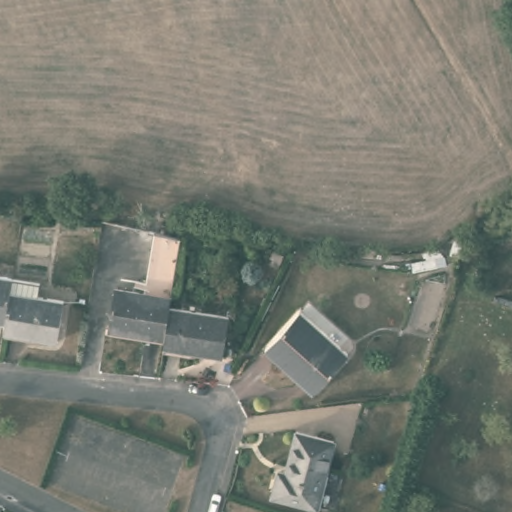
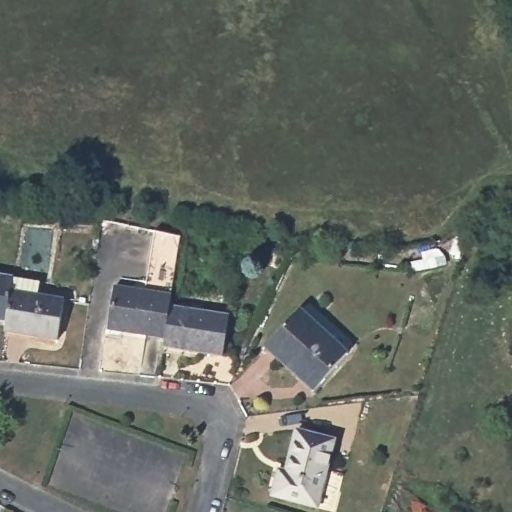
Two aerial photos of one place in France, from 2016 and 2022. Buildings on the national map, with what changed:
unchanged [(145,286),(153,231),(185,236),(174,292),(145,286)]
unchanged [(17,286),(11,318),(0,316),(0,272),(18,275),(17,286)]
unchanged [(173,303),(167,334),(112,324),(119,282),(145,286),(174,292),(173,303)]
unchanged [(11,318),(17,286),(70,296),(62,335),(9,325),(11,318)]
unchanged [(167,334),(173,303),(232,314),(226,353),(166,343),(167,334)]
unchanged [(302,306),(351,350),(318,388),(268,344),(302,306)]
unchanged [(339,437),(321,502),(275,488),(283,463),(291,465),(302,427),(339,437)]

